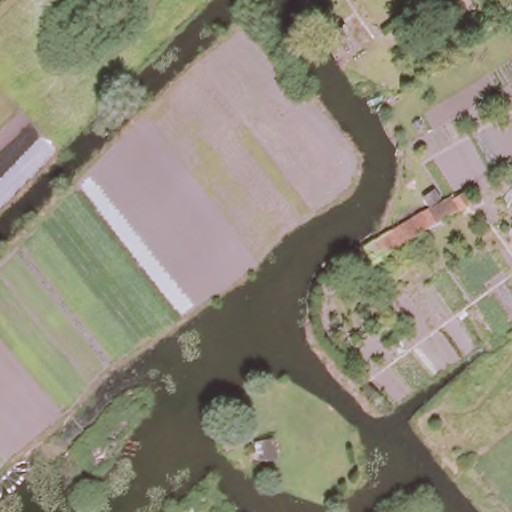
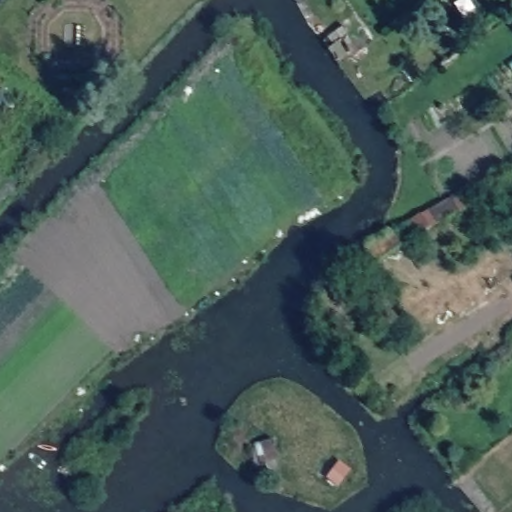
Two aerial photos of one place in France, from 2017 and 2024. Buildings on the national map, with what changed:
unchanged [(340,23),(345,29),(330,39),(326,33),(340,23)]
unchanged [(419,512),(411,512),(418,509),(419,512)]

